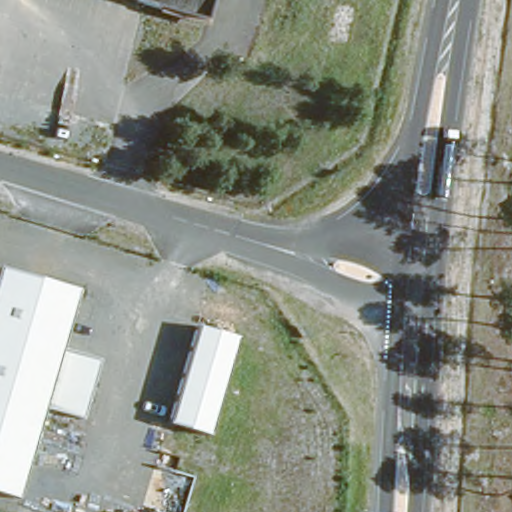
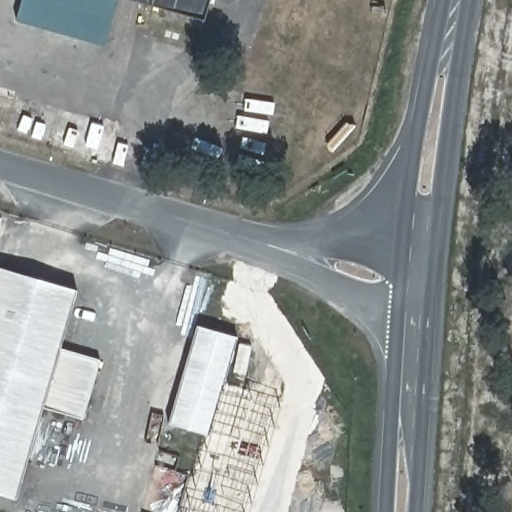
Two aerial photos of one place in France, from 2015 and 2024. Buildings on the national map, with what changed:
new [(105,47),(16,23),(22,0),(118,0),(105,47)]
unchanged [(205,17),(137,0),(210,0),(205,17)]
unchanged [(58,350),(99,361),(88,399),(0,373),(0,271),(74,292),(58,350)]
unchanged [(199,326),(241,337),(214,434),(213,439),(172,426),(174,422),(199,326)]
unchanged [(81,422),(41,411),(16,502),(0,498),(0,373),(88,399),(81,422)]

